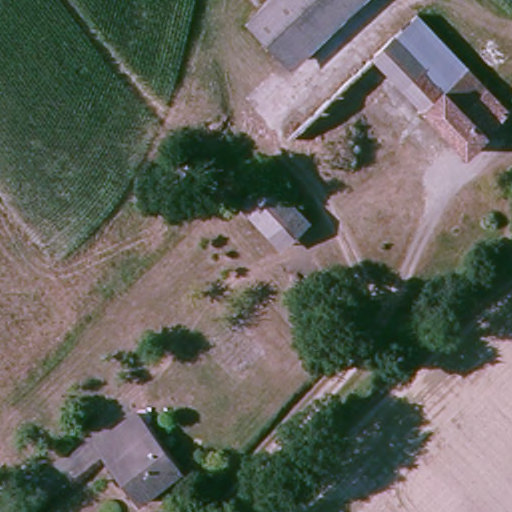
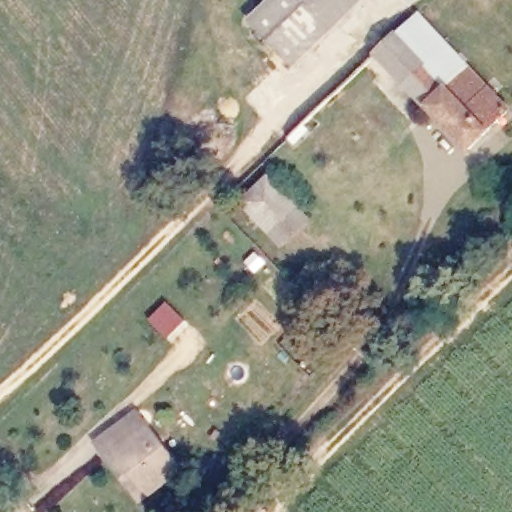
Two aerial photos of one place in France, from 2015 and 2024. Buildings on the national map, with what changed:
unchanged [(259,18),(276,0),(356,0),(299,58),(259,18)]
unchanged [(471,147),(426,100),(379,49),(404,28),(432,16),(512,95),(512,111),(495,127),(471,147)]
unchanged [(278,255),(236,212),(282,167),(325,212),(278,255)]
unchanged [(188,466),(155,500),(98,444),(131,410),(188,466)]

